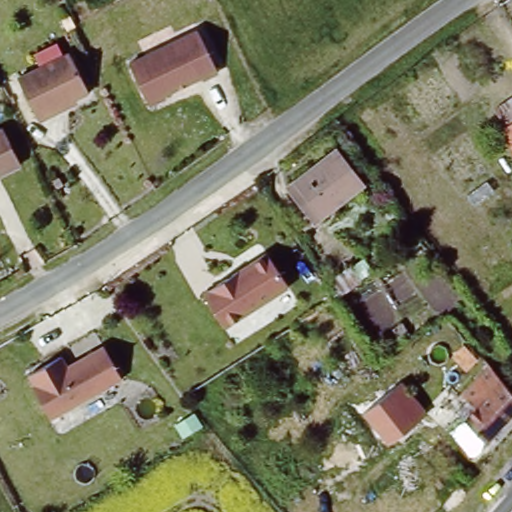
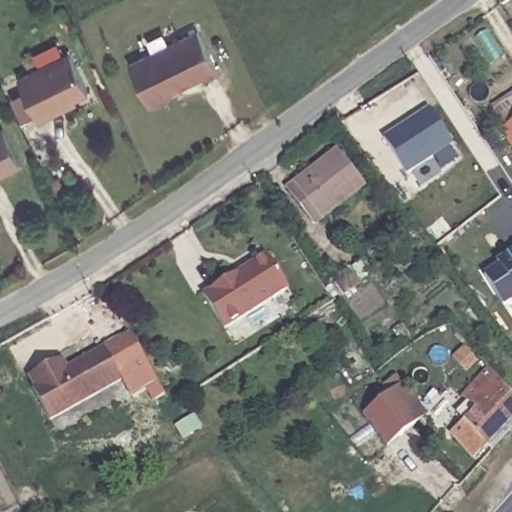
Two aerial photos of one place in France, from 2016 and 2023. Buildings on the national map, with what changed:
unchanged [(216,68),(201,75),(200,73),(163,91),(164,93),(147,101),(127,59),(195,24),(216,68)]
unchanged [(92,91),(55,107),(57,112),(42,119),(20,76),(72,53),(92,91)]
new [(428,107),(452,145),(408,173),(383,136),(428,107)]
unchanged [(20,163),(0,172),(0,130),(3,128),(20,163)]
unchanged [(511,146),(512,145),(512,147),(511,146)]
unchanged [(359,191),(313,224),(288,190),(335,157),(359,191)]
unchanged [(205,289),(269,250),(290,288),(225,325),(205,289)]
new [(499,263),(496,260),(512,250),(512,299),(505,304),(482,272),(499,263)]
unchanged [(30,373),(67,354),(70,362),(109,345),(125,381),(53,418),(30,373)]
unchanged [(487,451),(483,447),(472,458),(449,435),(473,412),(458,395),(477,378),(470,372),(483,359),(512,395),(512,427),(487,451)]
unchanged [(429,413),(387,447),(362,414),(403,384),(429,413)]

